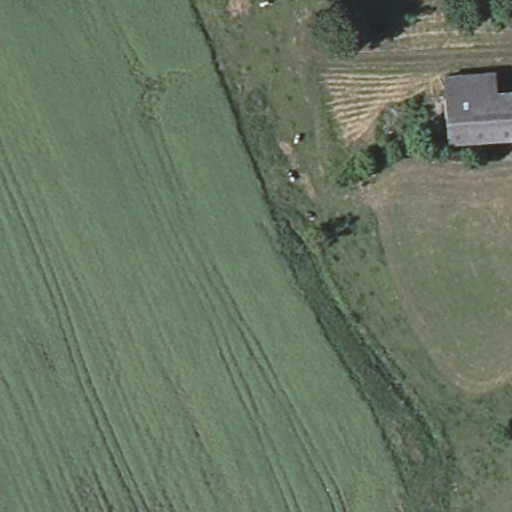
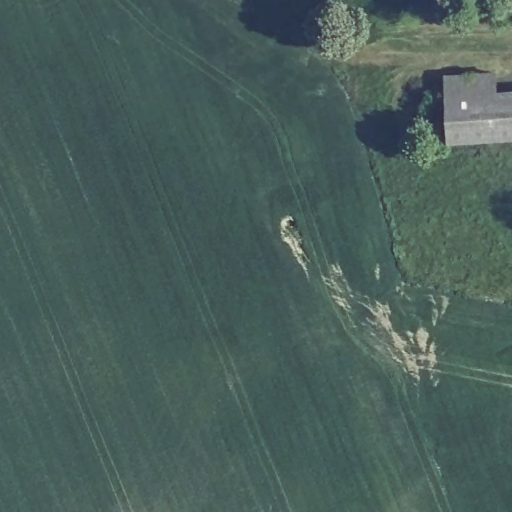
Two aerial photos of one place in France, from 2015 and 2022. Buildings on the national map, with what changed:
unchanged [(427,92),(512,87),(512,125),(429,130),(427,92)]

